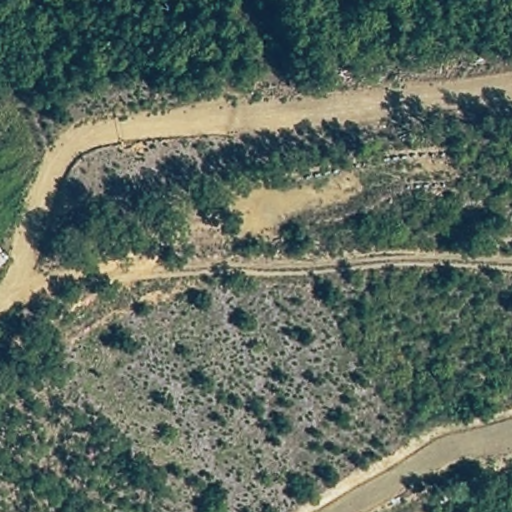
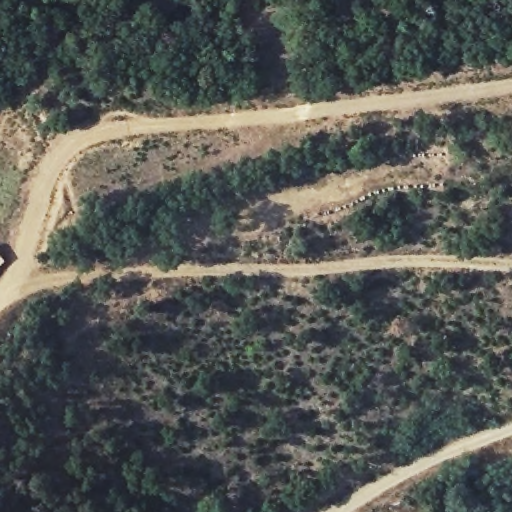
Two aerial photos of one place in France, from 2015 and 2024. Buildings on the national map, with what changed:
unchanged [(0,269),(0,258),(6,264),(0,269)]

